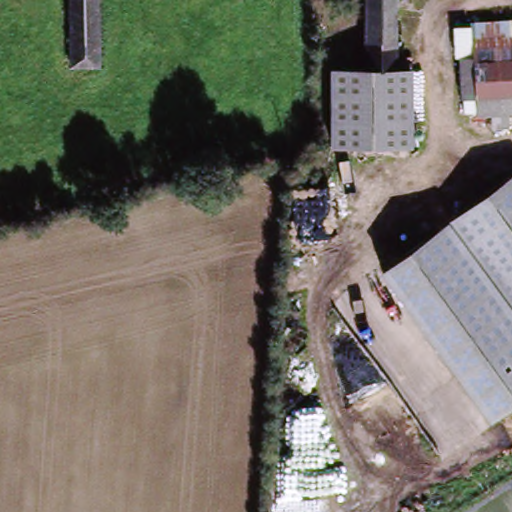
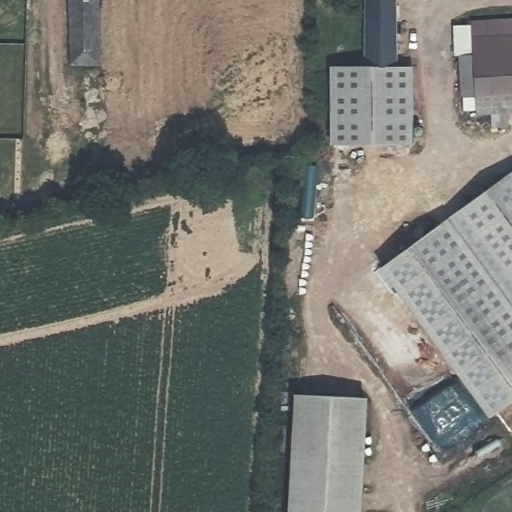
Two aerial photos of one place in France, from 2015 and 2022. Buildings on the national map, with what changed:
unchanged [(63,57),(64,0),(91,0),(88,58),(63,57)]
unchanged [(363,89),(363,0),(389,0),(389,88),(389,89),(363,89)]
unchanged [(512,19),(512,121),(485,123),(487,110),(474,114),(474,96),(461,103),(454,55),(465,53),(463,24),(512,19)]
new [(415,146),(405,145),(406,89),(389,89),(389,88),(389,67),(413,67),(415,146)]
unchanged [(363,89),(389,89),(406,89),(405,145),(324,147),(325,89),(363,89)]
unchanged [(512,178),(512,406),(493,421),(384,272),(512,178)]
new [(369,394),(359,512),(288,512),(298,389),(369,394)]

